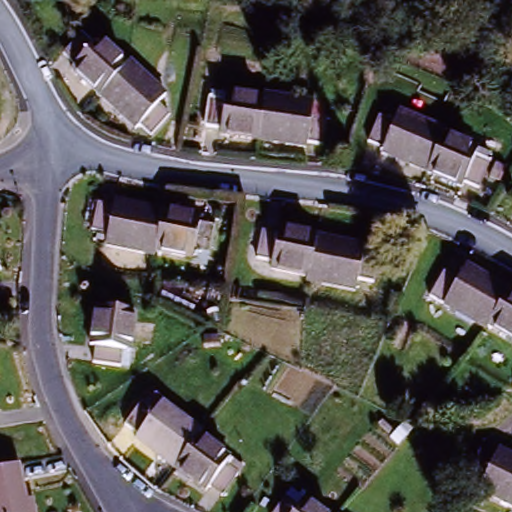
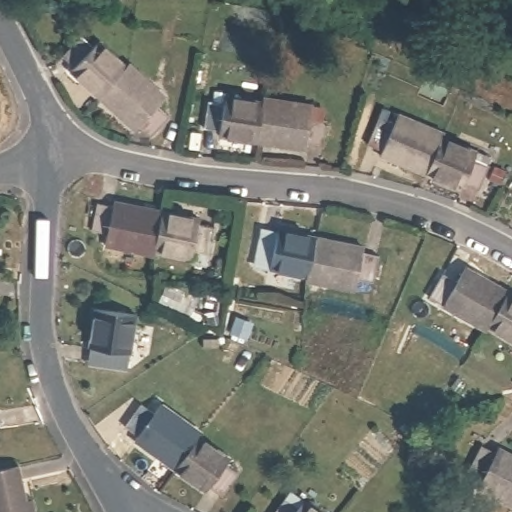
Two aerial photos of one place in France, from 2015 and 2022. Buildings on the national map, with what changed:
unchanged [(70,80),(73,78),(62,66),(81,46),(93,57),(98,52),(126,79),(99,107),(70,80)]
unchanged [(165,106),(157,115),(169,126),(150,146),(138,136),(133,139),(99,107),(126,79),(130,75),(130,74),(165,106)]
unchanged [(218,135),(219,130),(203,128),(207,100),(223,102),(225,95),(264,101),(257,141),(218,135)]
unchanged [(322,146),(306,144),(305,149),(257,141),(264,101),(265,96),(312,104),(325,106),(322,118),(326,119),(322,146)]
unchanged [(439,135),(423,173),(380,154),(382,150),(367,144),(377,119),(392,124),(398,113),(441,131),(439,135)]
unchanged [(478,190),(462,184),(460,189),(423,173),(439,135),(477,151),(487,156),(485,163),(489,164),(478,190)]
unchanged [(123,207),(125,201),(171,210),(166,238),(164,250),(163,255),(115,244),(117,234),(102,229),(108,204),(123,207)]
unchanged [(210,219),(210,224),(225,227),(219,254),(204,251),(202,258),(164,250),(166,238),(171,210),(210,219)]
unchanged [(270,269),(271,260),(256,258),(261,231),(277,234),(279,229),(316,236),(314,244),(307,277),(270,269)]
unchanged [(362,245),(362,250),(378,254),(373,282),(356,279),(354,289),(307,280),(307,277),(314,244),(316,236),(362,245)]
unchanged [(423,297),(438,273),(452,280),(460,267),(501,290),(481,324),(480,327),(478,329),(423,297)]
unchanged [(512,297),(512,343),(481,324),(501,290),(512,297)]
unchanged [(125,363),(125,368),(98,364),(100,347),(95,346),(101,308),(141,314),(135,352),(133,352),(132,364),(125,363)]
unchanged [(206,436),(203,439),(180,473),(140,445),(142,439),(129,430),(145,408),(151,412),(157,403),(165,408),(166,407),(206,436)]
unchanged [(203,439),(235,462),(230,467),(243,477),(226,499),(214,491),(210,495),(180,473),(203,439)]
unchanged [(471,476),(468,474),(481,450),(496,456),(498,451),(512,458),(512,510),(477,493),(478,491),(467,484),(471,476)]
unchanged [(28,503),(30,512),(0,512),(0,467),(15,463),(23,504),(28,503)]
unchanged [(295,506),(302,496),(315,506),(313,509),(317,512),(291,512),(295,506)]

